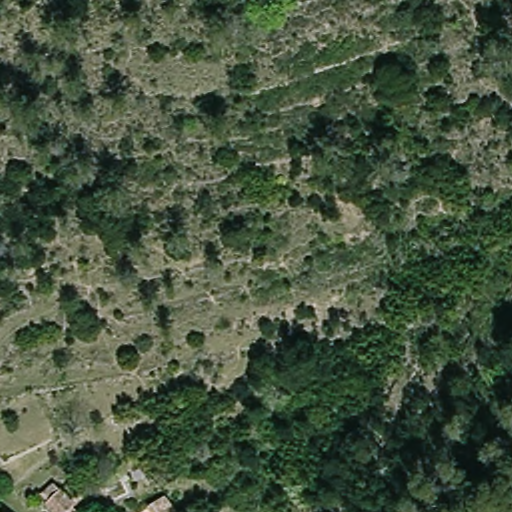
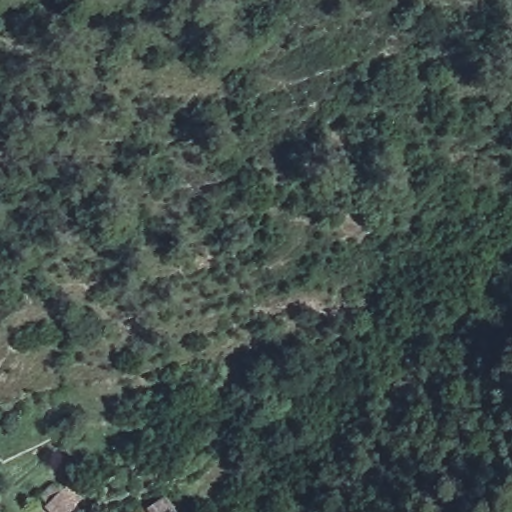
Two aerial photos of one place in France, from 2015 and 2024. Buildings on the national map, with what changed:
unchanged [(65,497),(75,512),(50,512),(47,507),(65,497)]
unchanged [(6,512),(3,512),(5,511),(6,512)]

